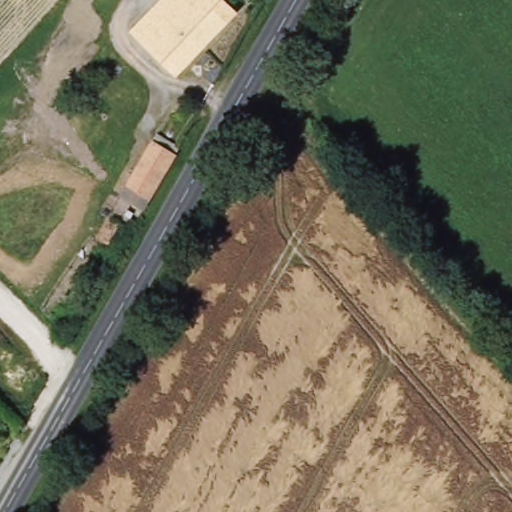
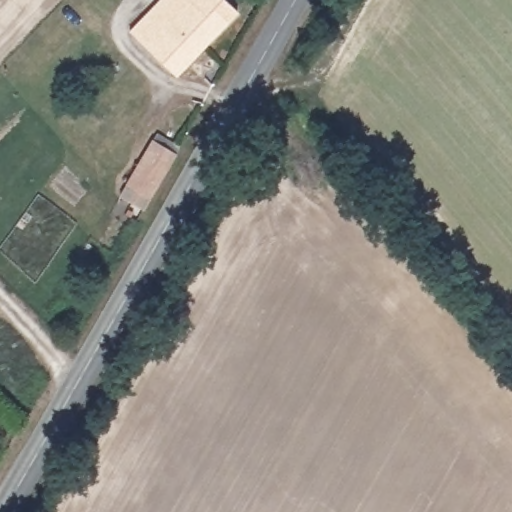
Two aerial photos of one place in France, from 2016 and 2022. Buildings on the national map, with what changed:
unchanged [(185,9),(174,24),(197,50),(172,77),(128,34),(159,0),(174,0),(185,9)]
unchanged [(241,3),(197,50),(174,24),(185,9),(174,0),(238,0),(241,3)]
unchanged [(142,207),(132,202),(120,195),(156,129),(177,139),(142,207)]

